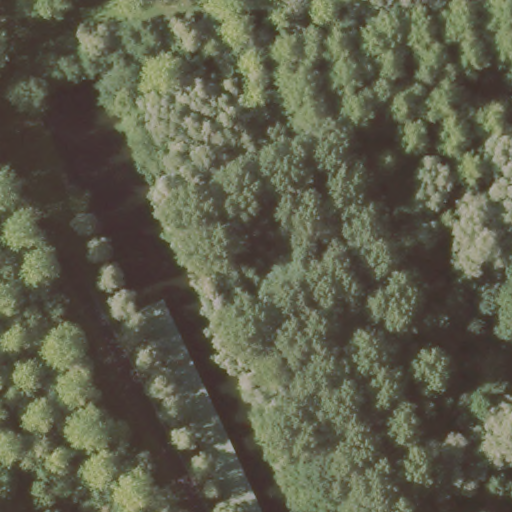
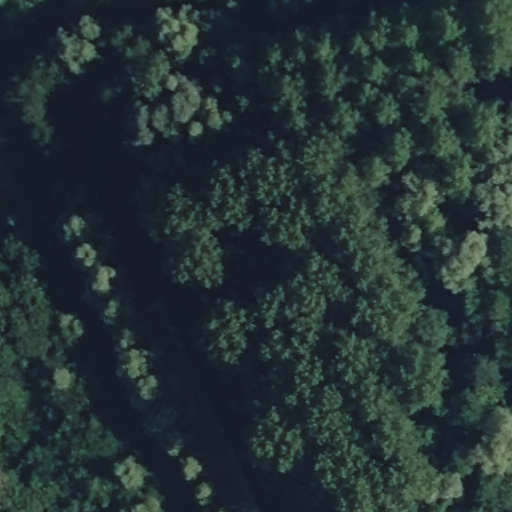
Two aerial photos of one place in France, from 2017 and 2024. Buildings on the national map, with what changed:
unchanged [(158,423),(120,340),(145,327),(233,512),(200,512),(158,423)]

